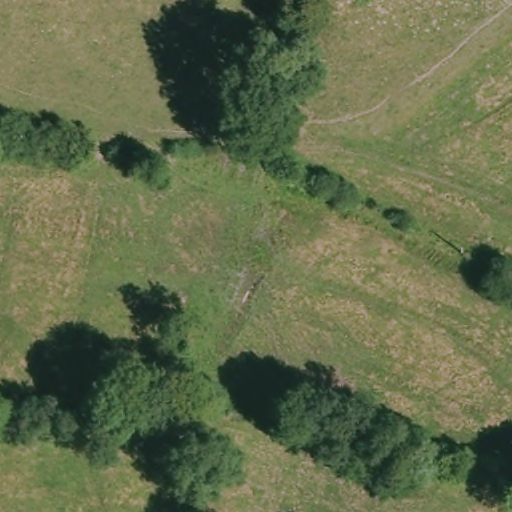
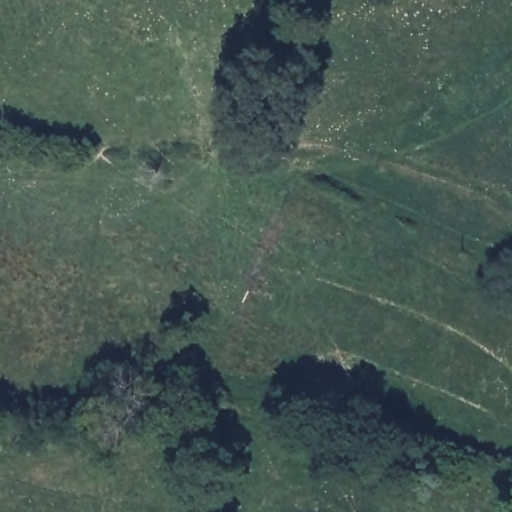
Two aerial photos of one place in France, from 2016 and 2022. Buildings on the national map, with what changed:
[]

